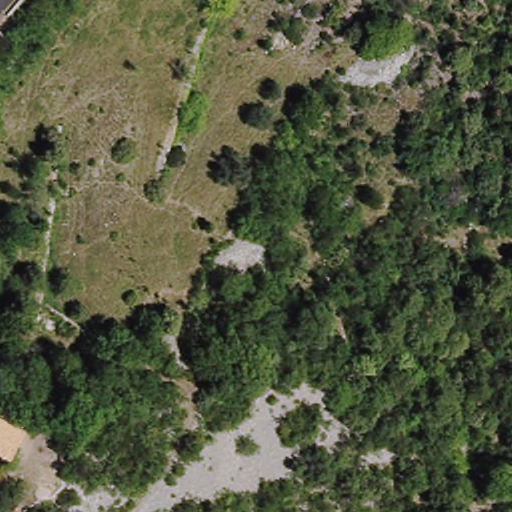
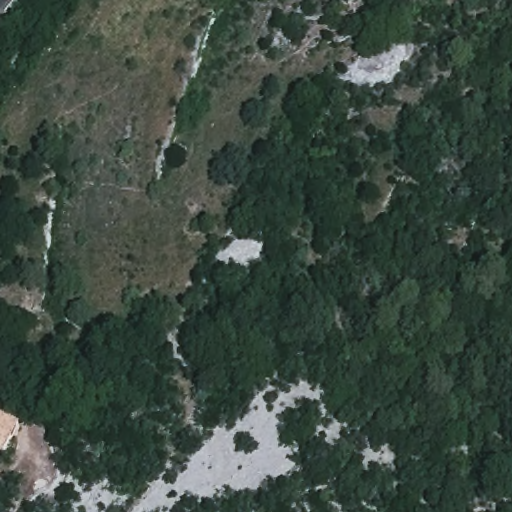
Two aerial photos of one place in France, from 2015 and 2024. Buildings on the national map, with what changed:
unchanged [(25,426),(10,463),(0,459),(0,416),(25,426)]

